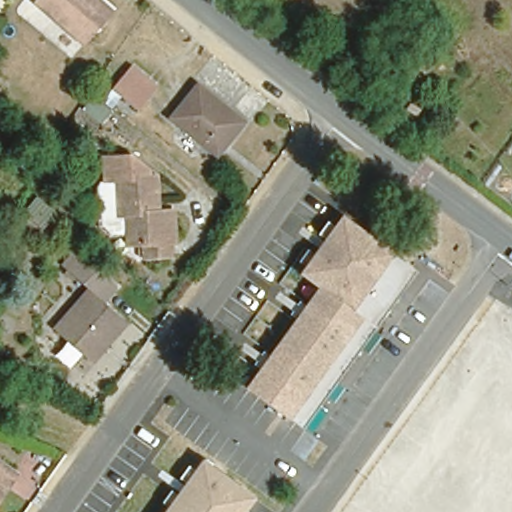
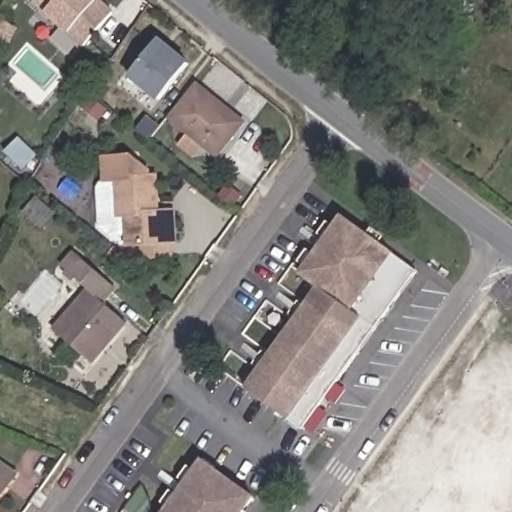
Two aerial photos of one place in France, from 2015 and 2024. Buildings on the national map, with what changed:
unchanged [(81,40),(37,0),(102,0),(109,7),(81,40)]
new [(156,102),(126,77),(158,37),(189,61),(156,102)]
demolished [(111,89),(130,65),(147,79),(127,102),(111,89)]
unchanged [(167,110),(192,79),(234,116),(209,146),(167,110)]
unchanged [(0,147),(8,135),(27,151),(18,162),(0,147)]
unchanged [(176,236),(169,237),(170,252),(142,254),(141,238),(128,240),(126,230),(109,231),(101,222),(97,181),(100,177),(104,175),(102,153),(128,150),(148,164),(149,170),(156,169),(158,197),(159,207),(163,207),(175,207),(176,236)]
unchanged [(265,348),(271,352),(296,317),(290,312),(299,300),(305,304),(320,283),(301,270),(341,214),(417,267),(304,426),(247,386),(262,365),(256,361),(265,348)]
unchanged [(66,263),(78,250),(114,283),(103,296),(125,317),(91,357),(57,326),(90,286),(66,263)]
unchanged [(10,466),(0,481),(0,458),(10,466)]
unchanged [(248,512),(166,512),(204,458),(258,497),(248,512)]

